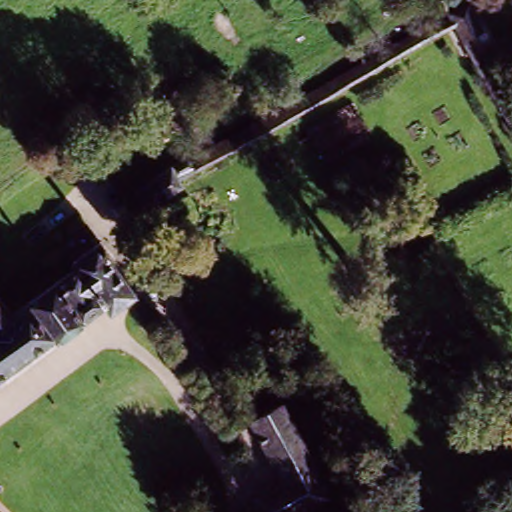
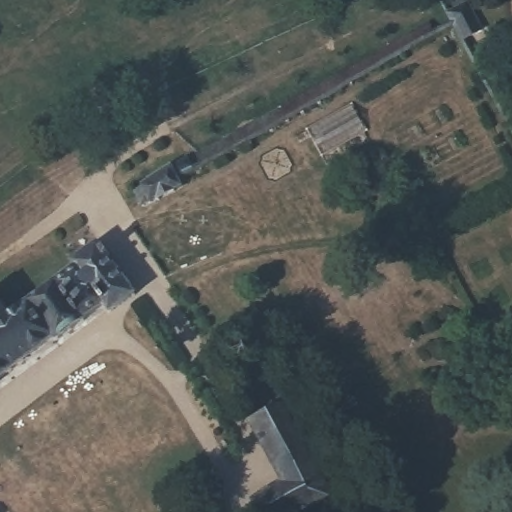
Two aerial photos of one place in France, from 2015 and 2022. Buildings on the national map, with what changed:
unchanged [(468,2),(482,31),(465,40),(451,11),(468,2)]
unchanged [(128,181),(171,158),(191,197),(148,220),(128,181)]
unchanged [(81,273),(77,268),(104,247),(117,265),(114,267),(139,301),(114,319),(108,310),(88,325),(89,326),(60,346),(58,342),(0,385),(0,299),(16,321),(81,273)]
unchanged [(258,512),(252,501),(284,483),(249,421),(279,405),(329,496),(301,512),(258,512)]

